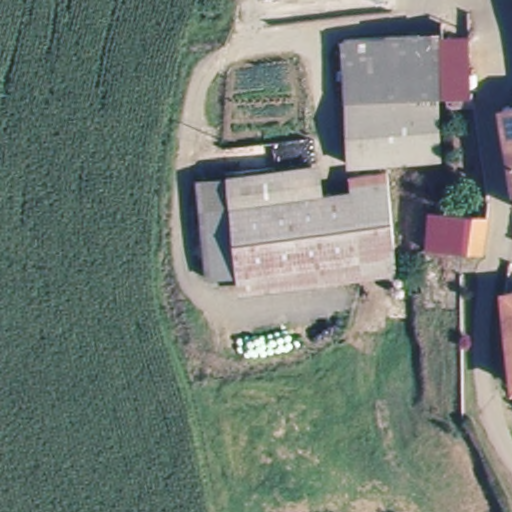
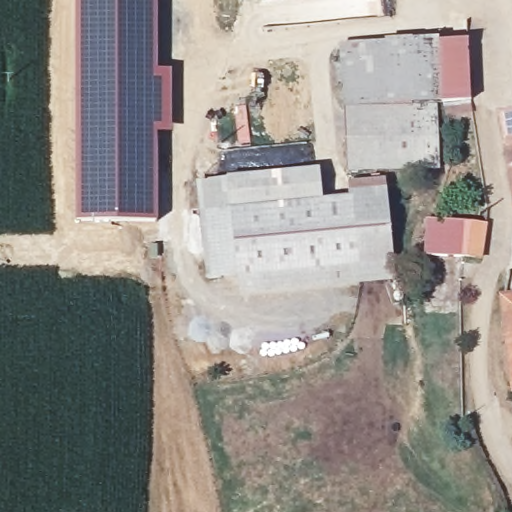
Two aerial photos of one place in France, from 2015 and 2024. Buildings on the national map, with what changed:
new [(158,67),(171,67),(172,132),(157,133),(158,220),(78,220),(79,64),(77,0),(158,0),(158,67)]
unchanged [(432,37),(458,36),(464,97),(436,100),(432,37)]
unchanged [(436,100),(340,107),(335,46),(432,37),(436,100)]
unchanged [(436,100),(441,165),(345,173),(340,107),(436,100)]
unchanged [(512,116),(512,157),(506,116),(512,116)]
unchanged [(224,175),(312,169),(315,200),(227,207),(225,184),(224,175)]
unchanged [(206,277),(200,185),(225,184),(227,207),(234,275),(206,277)]
unchanged [(227,207),(315,200),(352,197),(351,186),(382,184),(388,261),(234,275),(227,207)]
unchanged [(465,267),(465,255),(455,253),(426,249),(430,213),(459,216),(483,219),(479,256),(478,267),(465,267)]
unchanged [(388,261),(391,286),(236,300),(234,275),(388,261)]
unchanged [(512,297),(512,356),(500,300),(512,297)]

